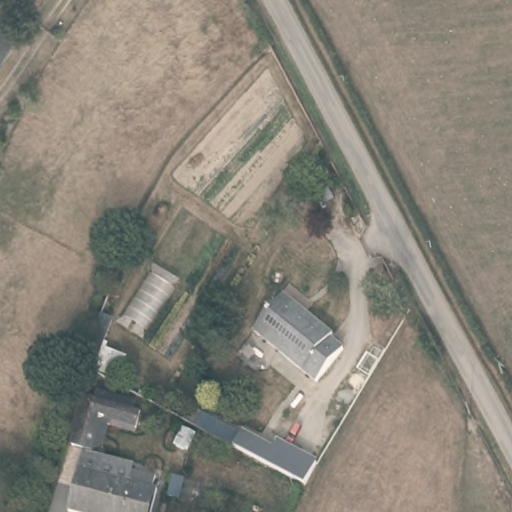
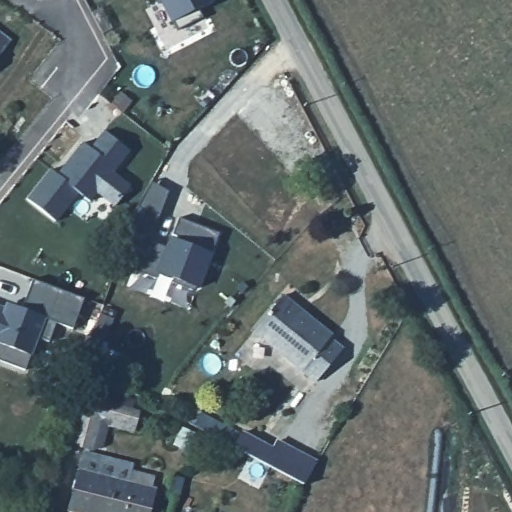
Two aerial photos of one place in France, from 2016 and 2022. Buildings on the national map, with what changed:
new [(195,7),(200,17),(175,30),(159,1),(155,2),(153,0),(210,0),(195,7)]
unchanged [(13,47),(0,63),(0,36),(13,47)]
new [(52,170),(60,177),(66,169),(64,167),(84,143),(91,149),(105,131),(130,152),(117,169),(134,183),(115,207),(98,193),(90,202),(79,193),(56,222),(28,200),(52,170)]
new [(151,182),(169,192),(160,216),(150,241),(173,250),(178,237),(173,235),(179,218),(220,234),(199,287),(193,291),(173,283),(174,278),(159,272),(156,279),(136,272),(144,251),(118,241),(137,207),(151,182)]
new [(6,309),(14,306),(22,309),(33,280),(85,299),(74,330),(58,323),(50,342),(38,338),(25,371),(0,361),(0,307),(6,309)]
unchanged [(332,343),(329,347),(339,356),(312,387),(265,347),(252,336),(282,300),(288,306),(332,343)]
new [(113,382),(92,370),(81,365),(90,339),(100,314),(111,318),(102,343),(100,348),(125,358),(113,382)]
unchanged [(134,431),(100,422),(89,452),(68,447),(85,396),(139,412),(134,431)]
unchanged [(197,412),(243,432),(274,447),(278,441),(316,462),(303,486),(234,448),(191,424),(197,412)]
unchanged [(152,497),(147,512),(67,512),(78,476),(152,497)]

